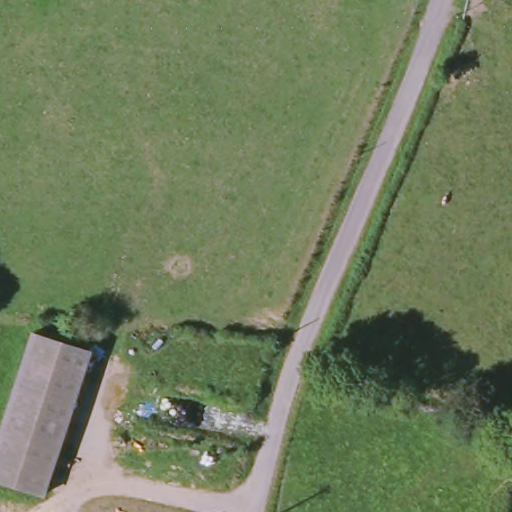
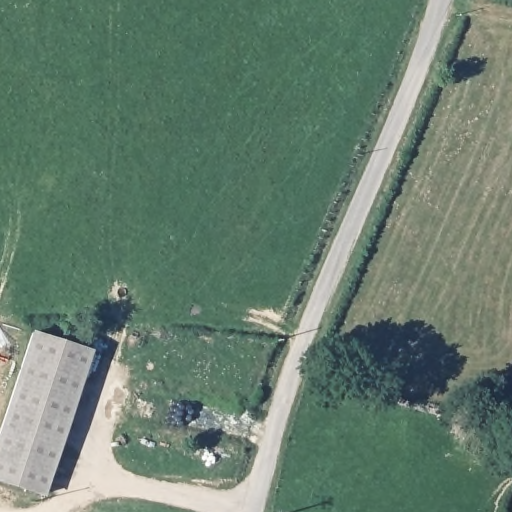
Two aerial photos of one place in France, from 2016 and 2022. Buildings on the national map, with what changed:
unchanged [(99,361),(47,501),(0,484),(0,453),(42,339),(99,361)]

